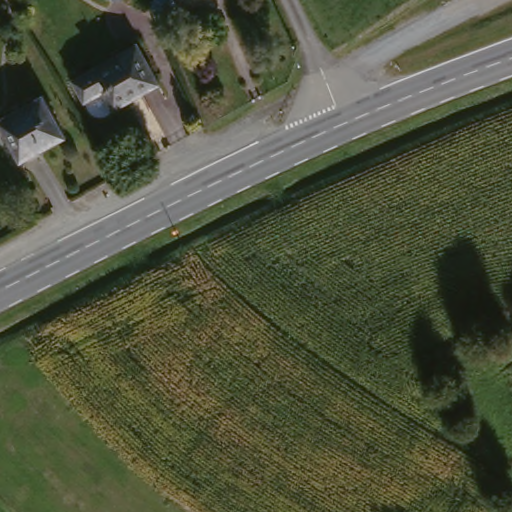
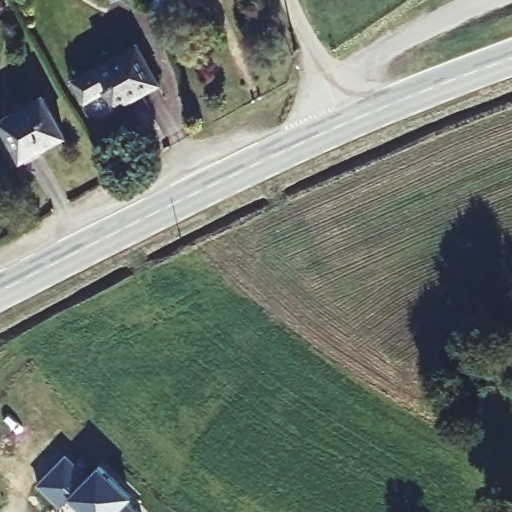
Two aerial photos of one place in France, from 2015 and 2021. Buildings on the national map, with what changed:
unchanged [(162,78),(119,101),(110,85),(88,97),(76,74),(140,39),(162,78)]
unchanged [(20,153),(0,120),(0,115),(39,92),(61,130),(20,153)]
new [(69,498),(62,505),(38,483),(66,453),(89,474),(100,463),(131,492),(127,497),(143,512),(90,512),(89,511),(88,512),(84,512),(69,498)]

